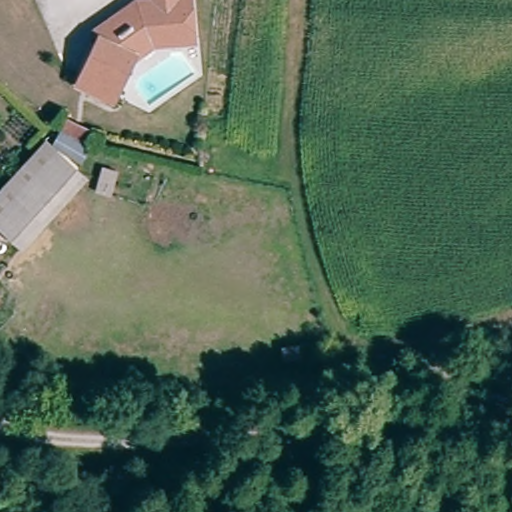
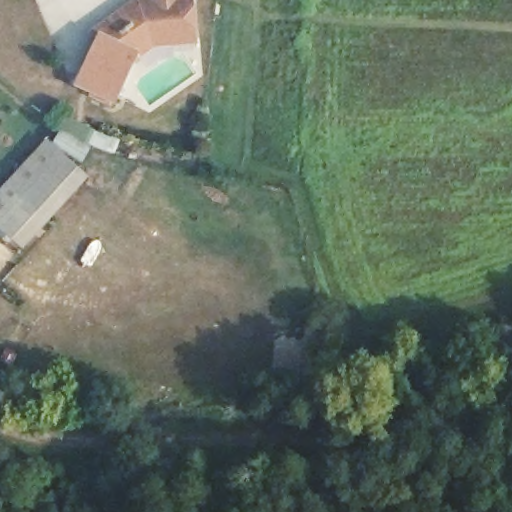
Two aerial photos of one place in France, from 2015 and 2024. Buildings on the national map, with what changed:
unchanged [(140,45),(125,55),(103,98),(102,98),(98,105),(79,95),(82,88),(69,80),(95,29),(128,6),(141,6),(141,0),(171,0),(171,4),(180,4),(182,43),(140,45)]
unchanged [(97,124),(91,137),(69,125),(75,112),(97,124)]
unchanged [(55,150),(0,210),(0,190),(45,141),(55,150)]
unchanged [(9,241),(0,232),(0,210),(55,150),(75,169),(82,175),(16,248),(9,241)]
unchanged [(124,166),(115,190),(101,185),(110,161),(124,166)]

